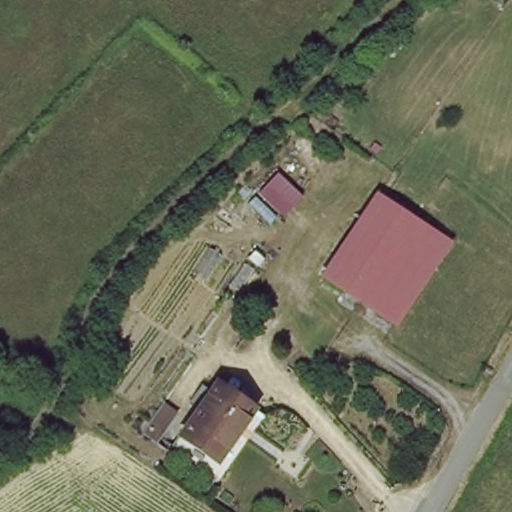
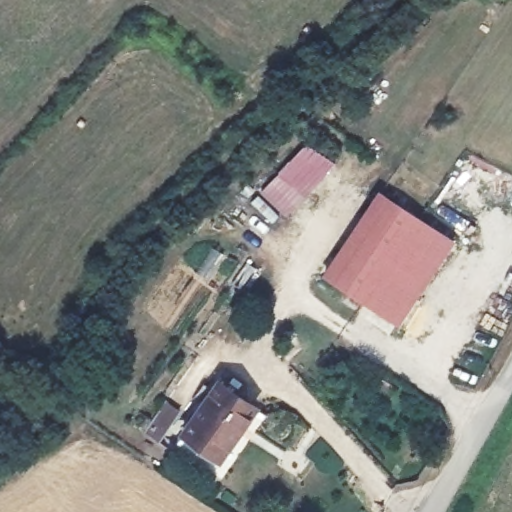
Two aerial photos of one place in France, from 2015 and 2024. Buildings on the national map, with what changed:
new [(307,145),(336,162),(284,215),(261,194),(307,145)]
unchanged [(329,273),(384,193),(405,208),(350,287),(329,273)]
unchanged [(405,208),(455,244),(401,323),(350,287),(405,208)]
unchanged [(221,382),(260,409),(225,460),(186,433),(221,382)]

